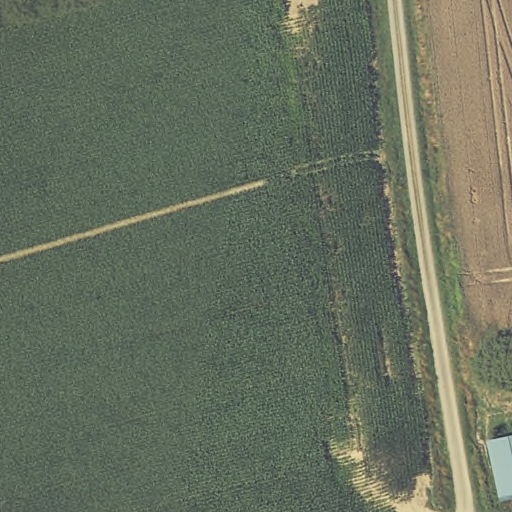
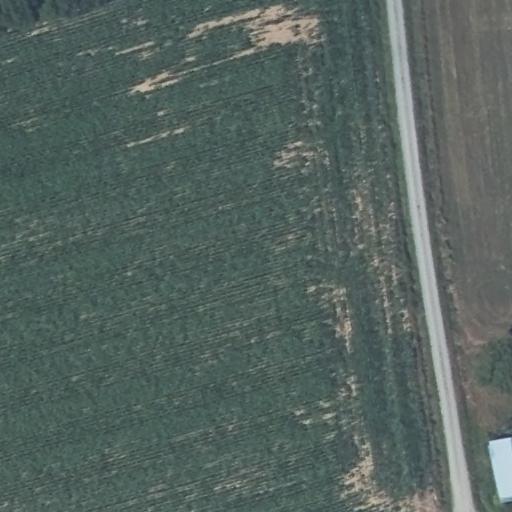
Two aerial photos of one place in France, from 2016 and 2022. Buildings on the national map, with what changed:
unchanged [(512,433),(512,496),(498,498),(485,438),(512,433)]

